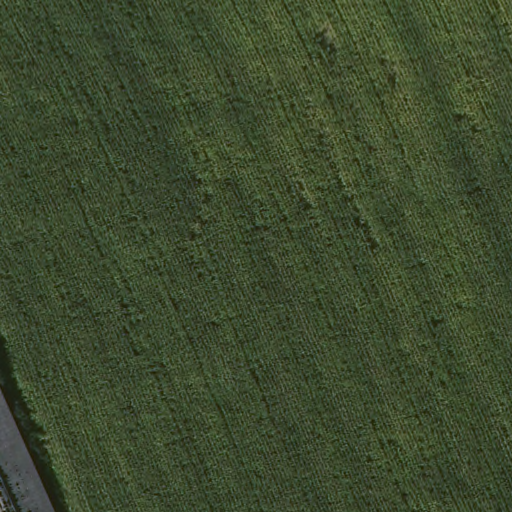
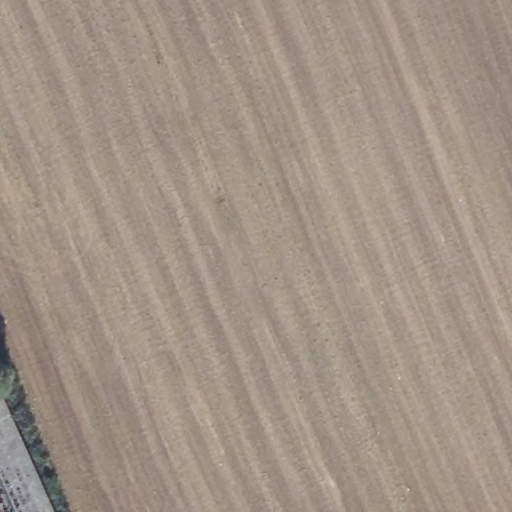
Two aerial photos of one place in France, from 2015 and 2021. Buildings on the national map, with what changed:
unchanged [(53,512),(0,512),(0,388),(53,512)]

